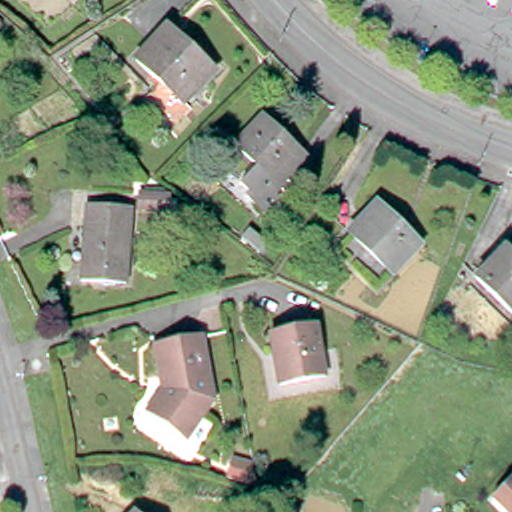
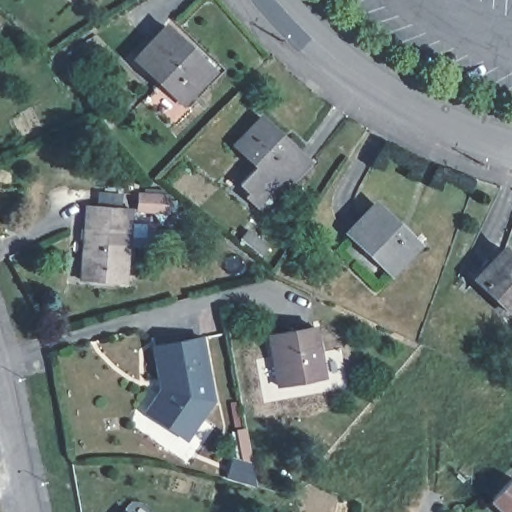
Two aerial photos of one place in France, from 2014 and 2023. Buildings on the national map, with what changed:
unchanged [(174,93),(166,85),(161,91),(144,74),(149,69),(131,53),(163,20),(209,66),(179,98),(186,104),(171,121),(159,108),(174,93)]
unchanged [(277,193),(263,207),(246,191),(249,188),(240,178),(257,160),(236,139),(262,113),(309,157),(283,187),(280,184),(274,189),(277,193)]
unchanged [(167,201),(167,216),(138,214),(139,199),(167,201)]
unchanged [(376,203),(421,244),(393,274),(348,232),(376,203)]
unchanged [(87,214),(130,216),(126,285),(82,283),(87,214)]
unchanged [(269,247),(263,254),(241,239),(248,230),(269,247)]
unchanged [(474,279),(504,248),(512,255),(512,315),(474,279)]
unchanged [(270,356),(267,335),(311,327),(321,378),(276,386),(273,369),(276,364),(274,355),(270,356)]
unchanged [(157,343),(204,334),(217,397),(190,436),(150,408),(159,394),(165,385),(164,379),(157,343)]
unchanged [(231,459),(252,465),(256,487),(225,479),(231,459)]
unchanged [(489,506),(490,499),(508,481),(512,485),(512,512),(496,512),(489,506)]
unchanged [(127,509),(129,512),(124,512),(127,509)]

